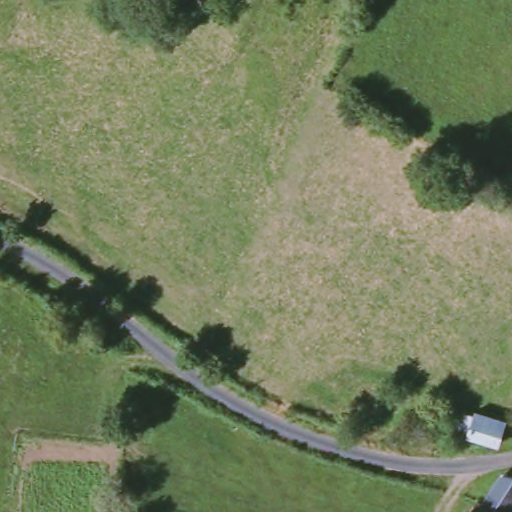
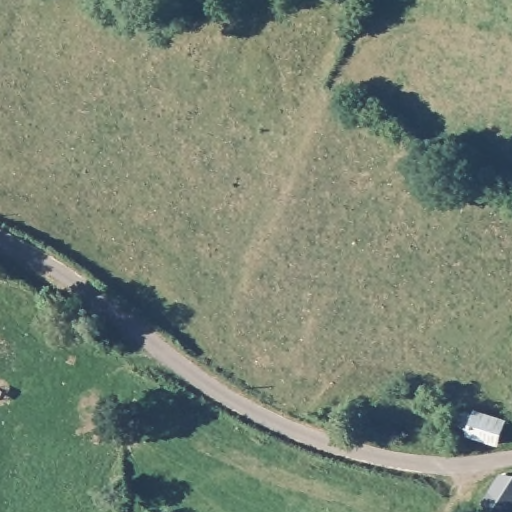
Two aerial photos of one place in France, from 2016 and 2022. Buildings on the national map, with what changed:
unchanged [(502,445),(500,447),(464,436),(472,414),(508,424),(502,445)]
unchanged [(480,507),(500,475),(512,478),(512,502),(506,512),(489,512),(480,507)]

